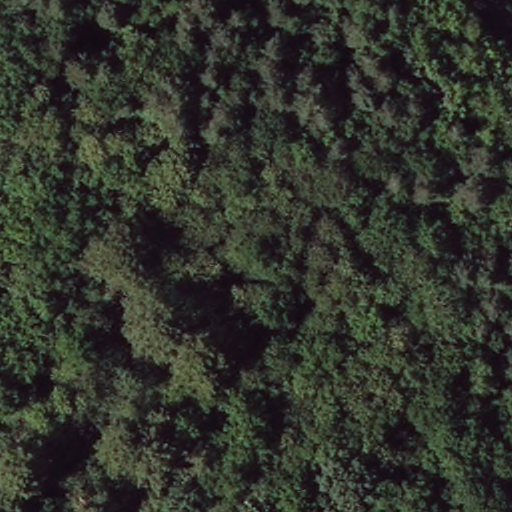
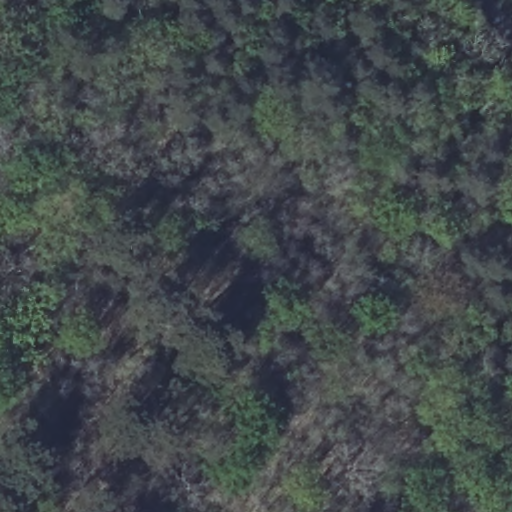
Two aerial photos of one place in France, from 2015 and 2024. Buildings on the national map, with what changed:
[]

